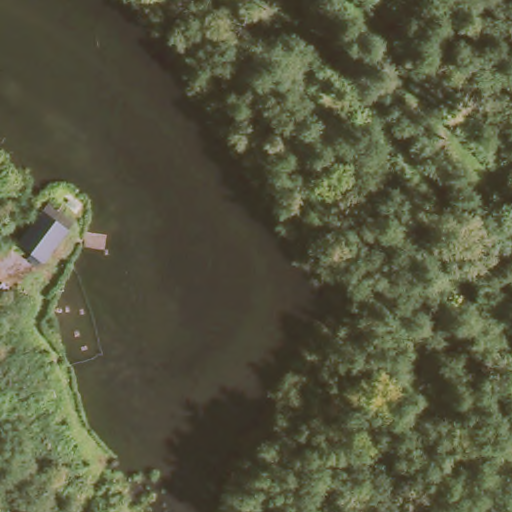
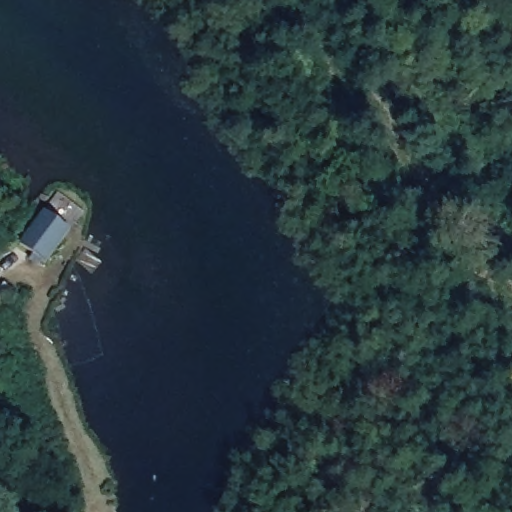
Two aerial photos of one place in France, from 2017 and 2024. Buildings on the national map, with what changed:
unchanged [(70,230),(45,265),(13,244),(40,210),(70,230)]

